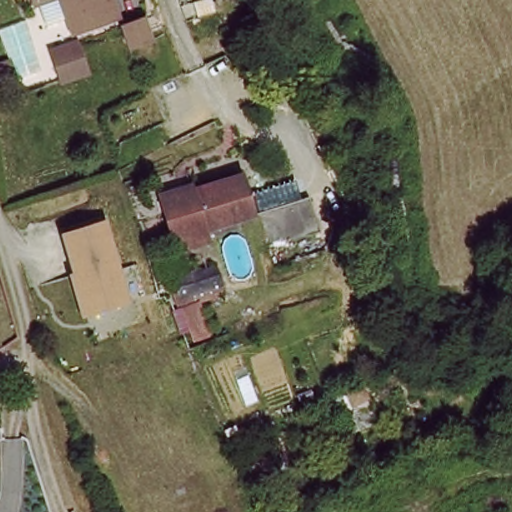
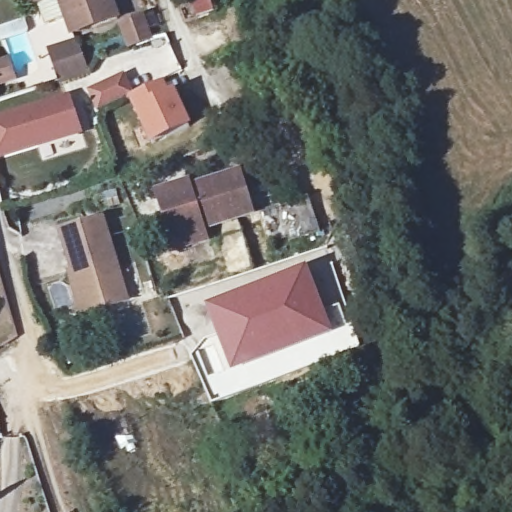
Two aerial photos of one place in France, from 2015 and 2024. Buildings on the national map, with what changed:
unchanged [(32,4),(30,0),(43,0),(32,4)]
unchanged [(110,3),(116,18),(70,34),(67,25),(58,0),(109,0),(110,3)]
new [(141,17),(149,38),(129,46),(121,25),(141,17)]
unchanged [(84,71),(58,81),(47,53),(73,43),(84,71)]
new [(90,93),(120,75),(131,93),(101,111),(90,93)]
new [(167,82),(173,94),(177,92),(194,127),(152,147),(136,112),(131,99),(167,82)]
new [(69,96),(81,134),(0,159),(0,117),(69,96)]
unchanged [(256,195),(261,215),(217,229),(221,241),(186,251),(168,196),(202,184),(204,188),(238,177),(250,174),(256,195)]
unchanged [(262,213),(310,199),(318,228),(270,241),(262,213)]
unchanged [(133,302),(82,317),(70,274),(73,272),(60,233),(107,218),(133,302)]
unchanged [(172,280),(219,266),(222,275),(175,289),(172,280)]
new [(307,267),(334,333),(309,345),(233,373),(231,374),(206,306),(307,267)]
demolished [(222,275),(227,294),(204,301),(203,296),(179,303),(175,289),(222,275)]
unchanged [(186,306),(202,301),(211,333),(195,338),(186,306)]
new [(309,345),(318,363),(239,394),(236,387),(243,385),(239,377),(235,378),(233,373),(309,345)]
unchanged [(352,446),(334,407),(362,394),(380,433),(352,446)]

